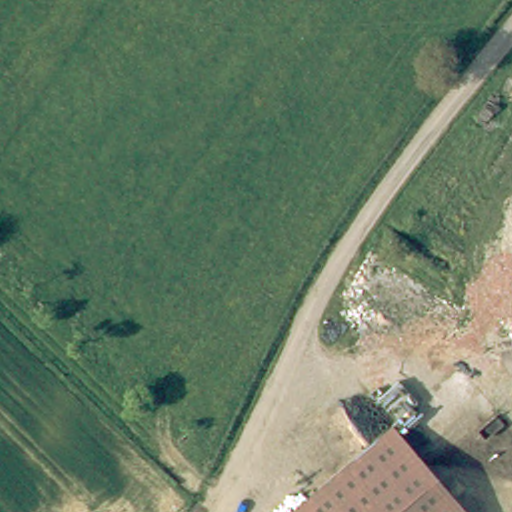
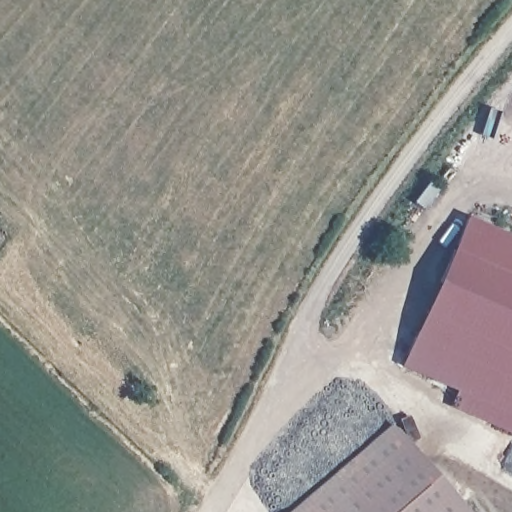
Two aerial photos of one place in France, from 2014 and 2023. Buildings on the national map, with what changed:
new [(512,236),(512,415),(403,367),(466,216),(512,236)]
unchanged [(396,420),(477,512),(289,512),(396,420)]

